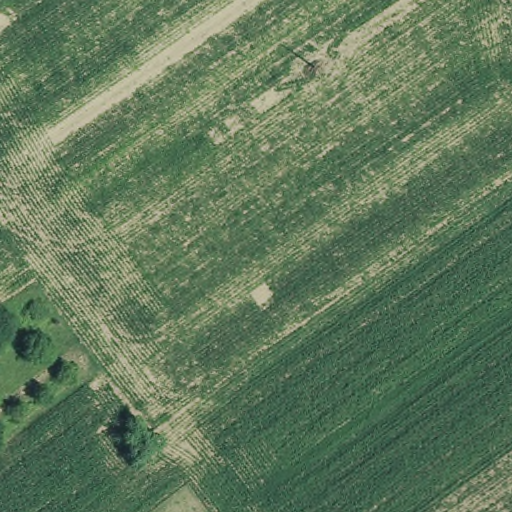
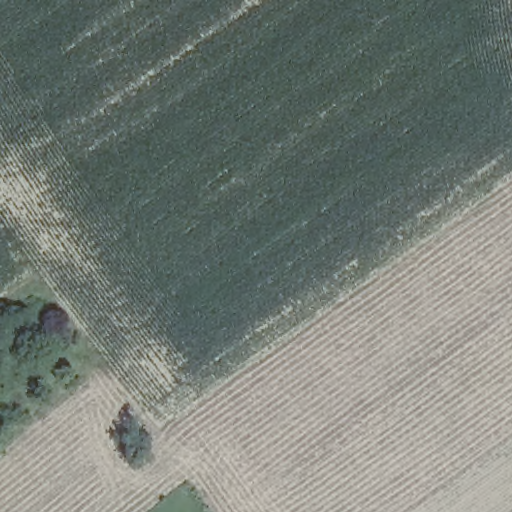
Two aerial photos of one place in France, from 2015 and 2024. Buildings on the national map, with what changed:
[]

